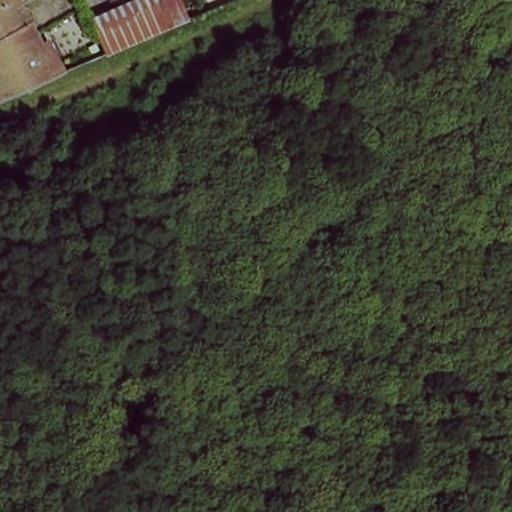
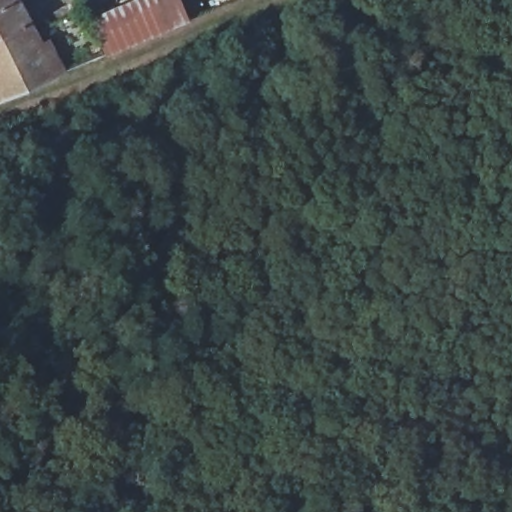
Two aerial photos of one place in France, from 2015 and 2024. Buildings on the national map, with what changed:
unchanged [(0,97),(0,0),(21,0),(56,80),(2,102),(0,97)]
unchanged [(109,61),(100,35),(105,32),(96,11),(123,0),(186,0),(197,25),(109,61)]

